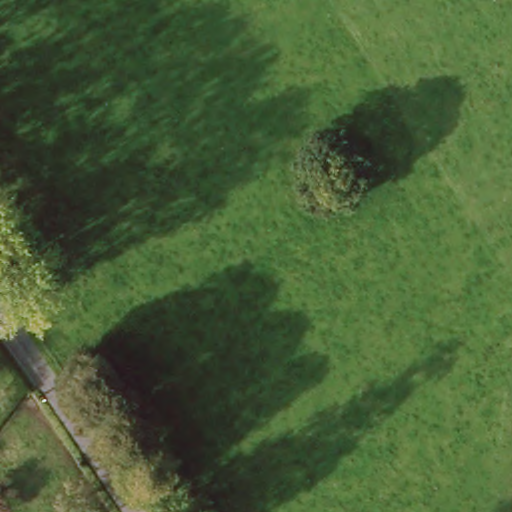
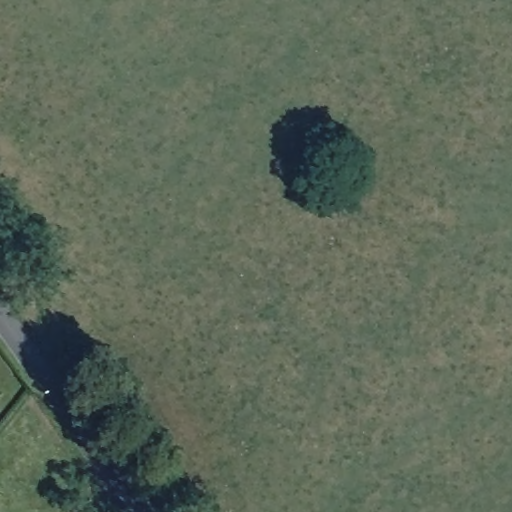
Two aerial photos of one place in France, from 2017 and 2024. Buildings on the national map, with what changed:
unchanged [(30,389),(17,398),(9,387),(22,377),(30,389)]

